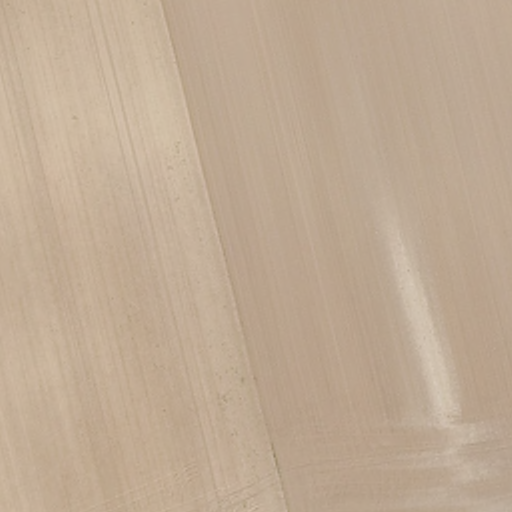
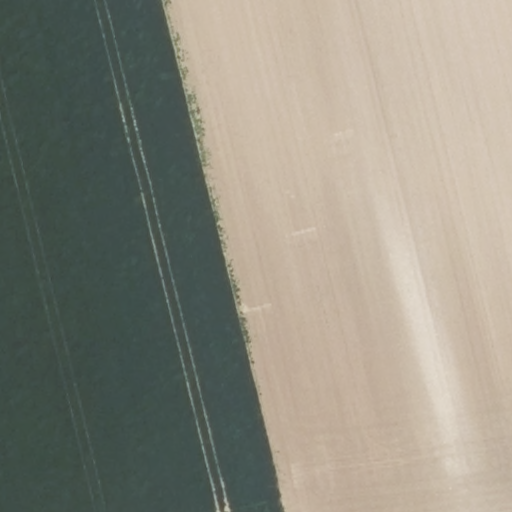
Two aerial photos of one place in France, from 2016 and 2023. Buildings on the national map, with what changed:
[]

